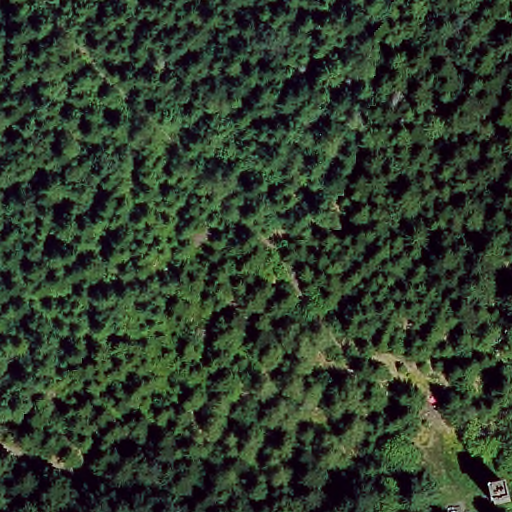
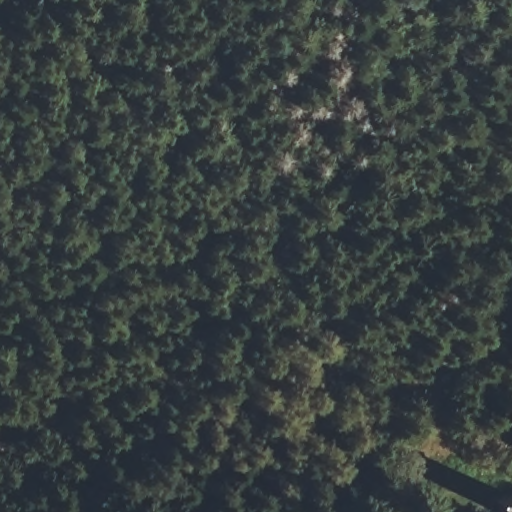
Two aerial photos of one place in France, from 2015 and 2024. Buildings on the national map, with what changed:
unchanged [(510,509),(499,512),(495,512),(490,495),(507,492),(510,509)]

